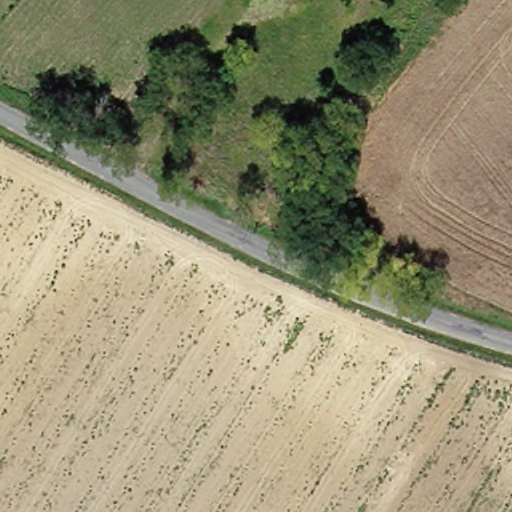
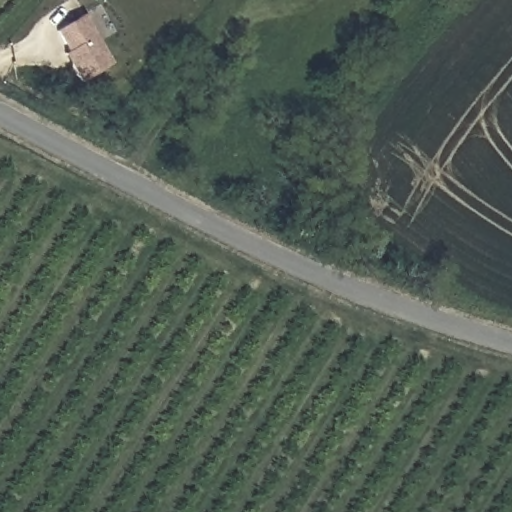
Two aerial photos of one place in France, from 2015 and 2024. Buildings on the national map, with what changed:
new [(59,30),(87,14),(116,63),(83,82),(67,53),(71,51),(59,30)]

